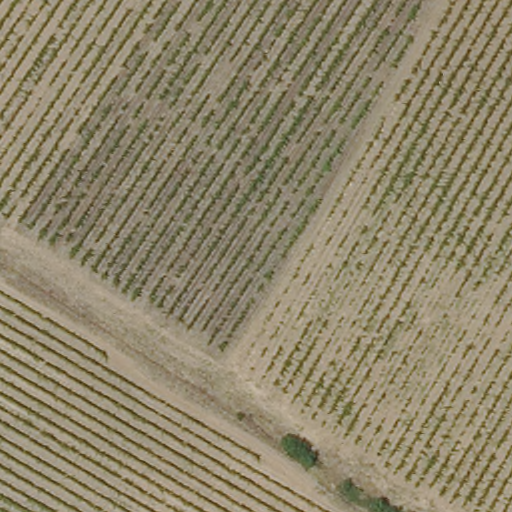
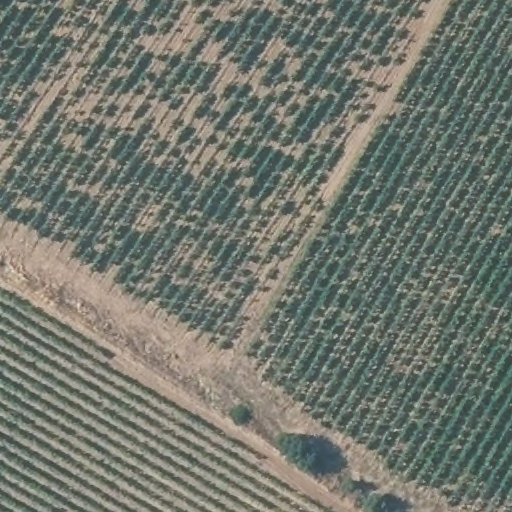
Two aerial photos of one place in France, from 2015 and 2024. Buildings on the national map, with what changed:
[]

